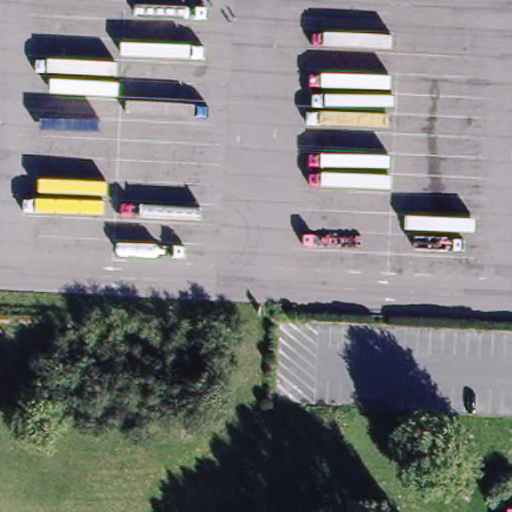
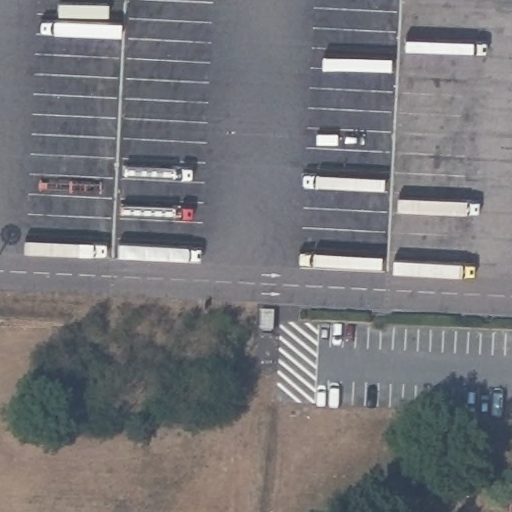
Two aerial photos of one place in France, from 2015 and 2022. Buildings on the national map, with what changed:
[]

